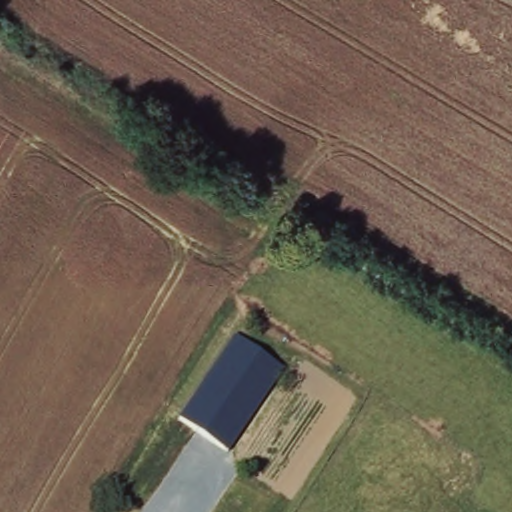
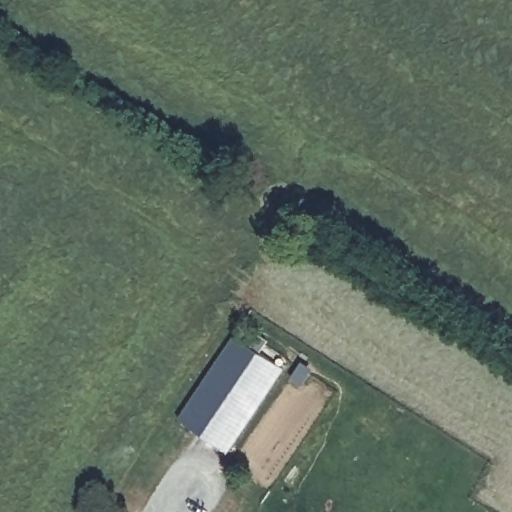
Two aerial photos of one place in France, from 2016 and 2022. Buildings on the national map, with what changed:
unchanged [(282,370),(187,512),(170,512),(132,486),(232,336),(282,370)]

